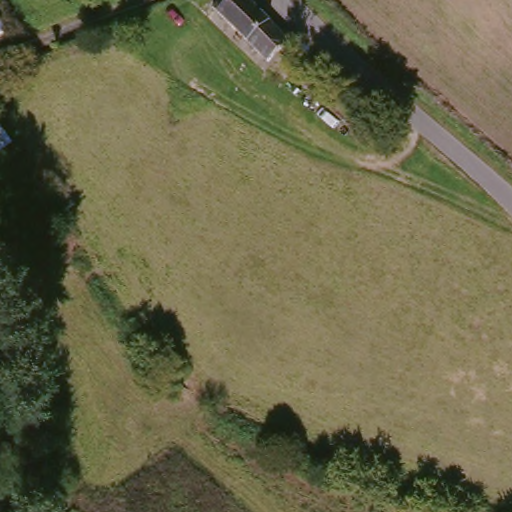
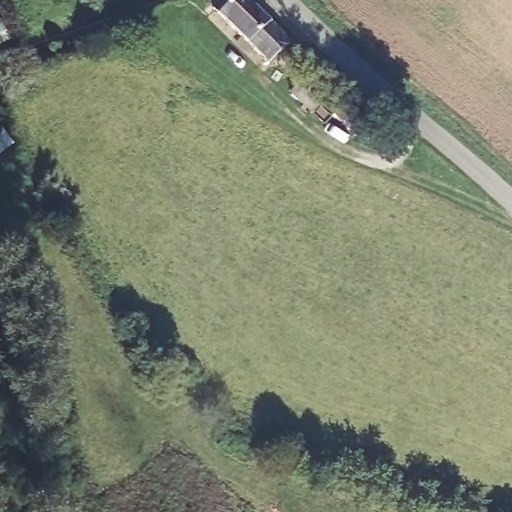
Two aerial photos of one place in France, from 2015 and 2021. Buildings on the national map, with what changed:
unchanged [(263,63),(222,21),(230,14),(244,1),(287,41),(263,63)]
unchanged [(0,49),(0,31),(8,46),(0,49)]

